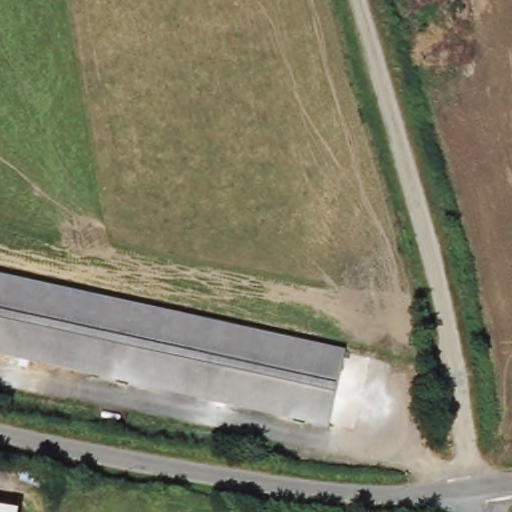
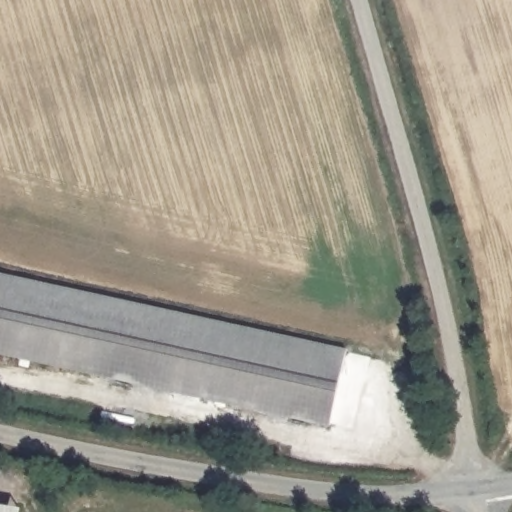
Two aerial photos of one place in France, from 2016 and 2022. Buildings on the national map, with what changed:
unchanged [(297,420),(0,354),(0,280),(342,353),(327,427),(297,420)]
unchanged [(23,512),(0,512),(0,502),(25,505),(23,512)]

